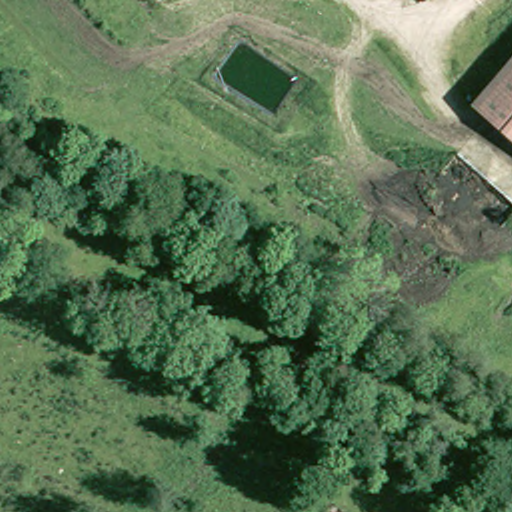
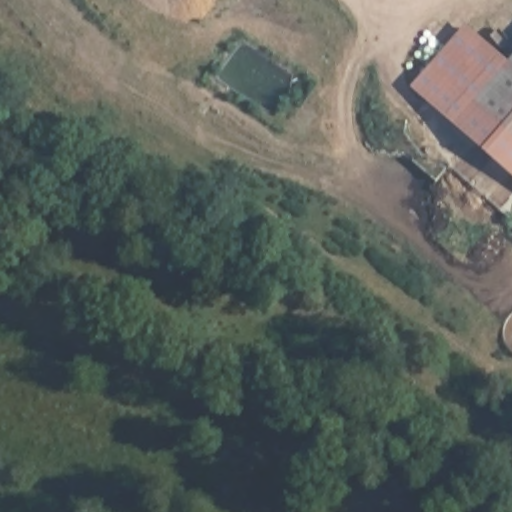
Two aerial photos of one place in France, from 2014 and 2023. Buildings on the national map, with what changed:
new [(512,137),(512,174),(410,86),(465,23),(511,65),(475,104),(512,137)]
unchanged [(512,64),(512,137),(475,104),(512,64)]

